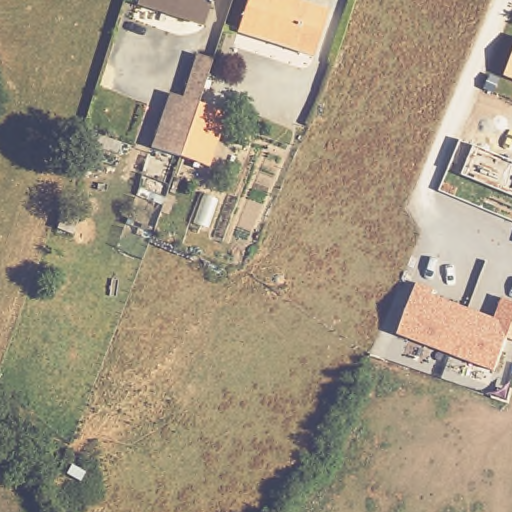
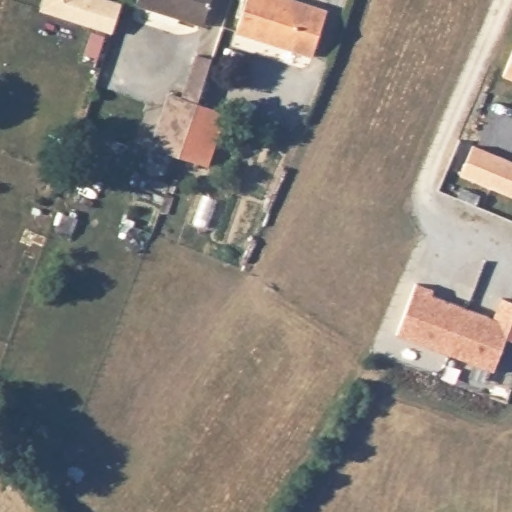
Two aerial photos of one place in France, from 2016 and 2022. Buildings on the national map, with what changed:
new [(113,0),(122,3),(112,34),(39,11),(43,0),(113,0)]
unchanged [(140,9),(143,0),(215,0),(207,27),(140,9)]
unchanged [(320,60),(242,37),(253,0),(279,0),(333,15),(320,60)]
unchanged [(156,143),(171,88),(187,92),(199,51),(214,54),(201,96),(186,151),(156,143)]
unchanged [(230,106),(215,160),(186,151),(201,96),(230,106)]
unchanged [(475,145),(512,160),(512,198),(461,175),(475,145)]
unchanged [(501,296),(512,300),(512,339),(506,337),(496,371),(395,333),(413,283),(495,313),(501,296)]

